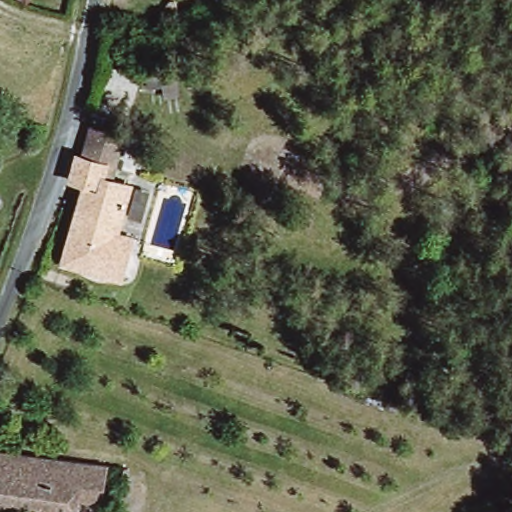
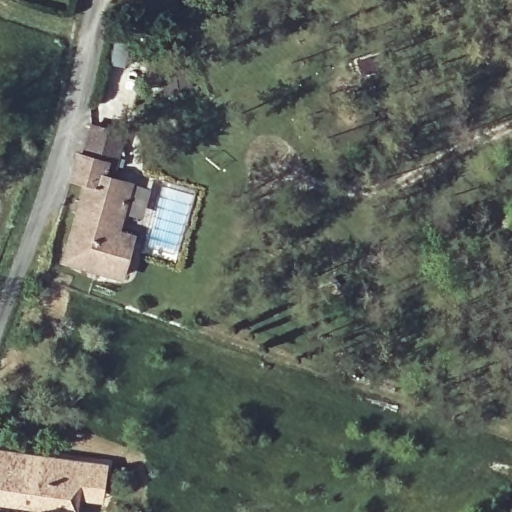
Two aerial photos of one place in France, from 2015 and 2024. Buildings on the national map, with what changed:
unchanged [(76,150),(82,150),(85,136),(90,124),(124,131),(114,175),(125,177),(112,235),(127,239),(118,271),(59,256),(81,179),(69,175),(76,150)]
unchanged [(0,504),(0,449),(116,460),(114,486),(100,485),(99,492),(78,491),(75,511),(0,504)]

